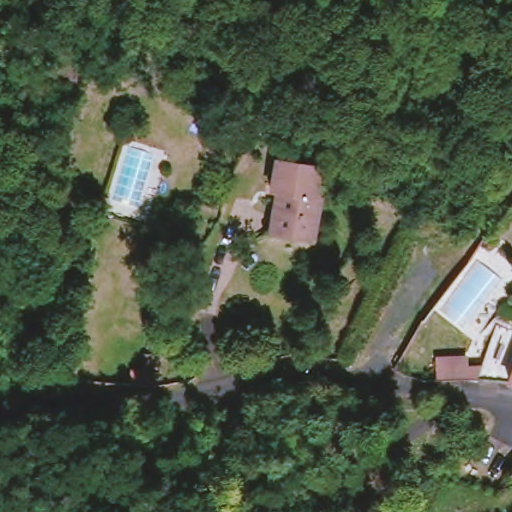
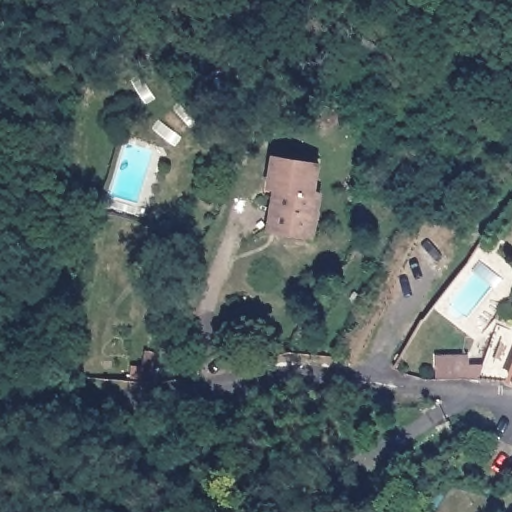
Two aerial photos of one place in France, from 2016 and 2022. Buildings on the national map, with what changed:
unchanged [(283,237),(291,195),(276,192),(281,163),(324,170),(321,199),(326,200),(318,244),(283,237)]
unchanged [(437,382),(434,361),(469,358),(470,380),(458,381),(437,383),(437,382)]

